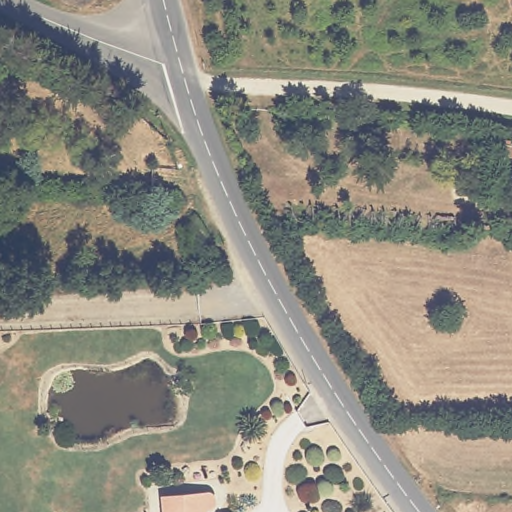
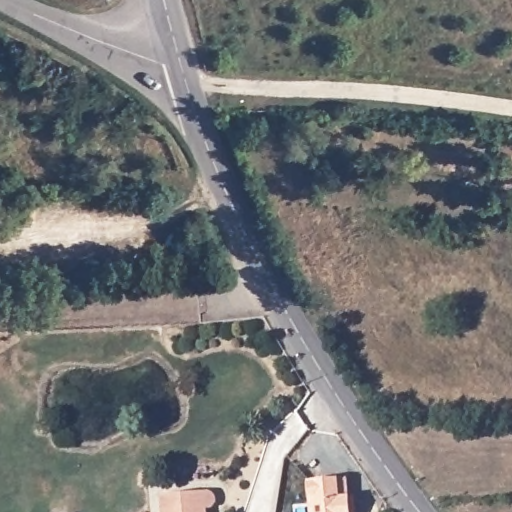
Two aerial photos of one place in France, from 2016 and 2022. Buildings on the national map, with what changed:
new [(352,497),(356,497),(358,512),(314,512),(313,482),(351,479),(352,497)]
unchanged [(205,495),(216,495),(218,497),(219,499),(219,503),(219,507),(216,511),(209,511),(209,512),(166,512),(165,498),(205,495)]

